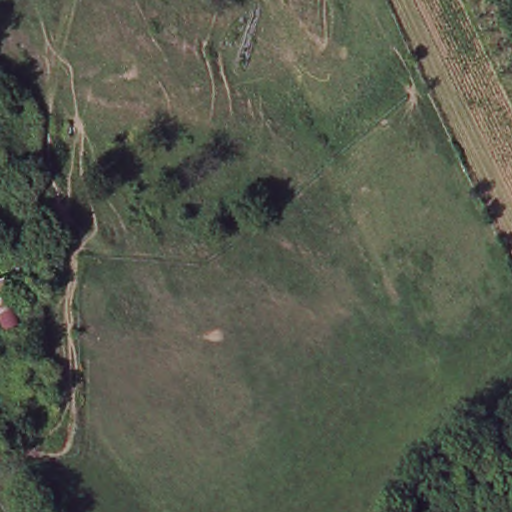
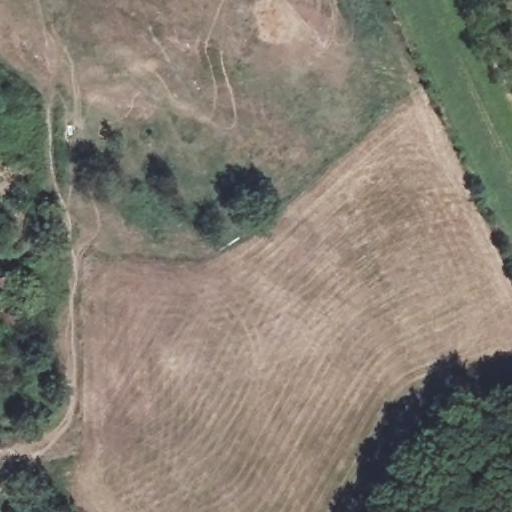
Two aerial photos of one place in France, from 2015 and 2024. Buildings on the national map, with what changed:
unchanged [(13,272),(31,319),(11,328),(0,300),(0,276),(13,272)]

